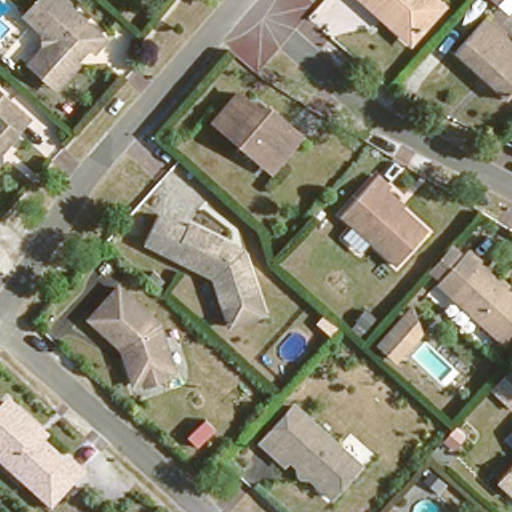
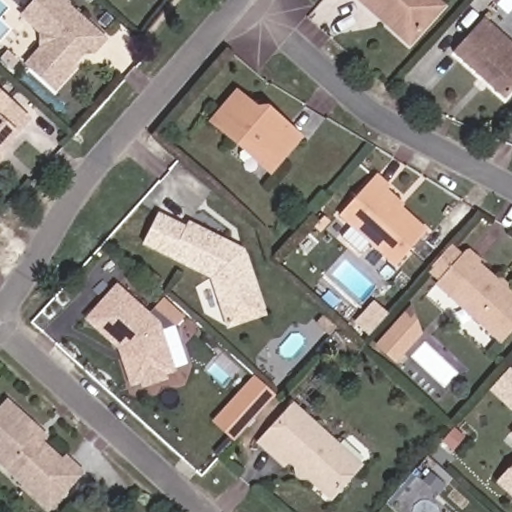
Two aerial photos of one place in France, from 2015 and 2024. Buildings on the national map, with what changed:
unchanged [(39,0),(53,0),(103,45),(93,59),(87,55),(59,89),(45,91),(30,77),(27,66),(45,47),(19,22),(39,0)]
unchanged [(365,0),(437,0),(412,29),(406,37),(376,10),(365,0)]
unchanged [(497,0),(502,0),(500,2),(497,0)]
unchanged [(512,85),(506,91),(455,47),(483,15),(512,40),(512,85)]
unchanged [(0,140),(0,87),(26,111),(0,140)]
unchanged [(236,134),(212,113),(237,88),(245,94),(255,91),(263,100),(297,127),(275,151),(266,161),(236,134)]
unchanged [(394,258),(339,211),(375,170),(393,185),(390,188),(402,199),(398,203),(423,226),(394,258)]
unchanged [(224,321),(218,302),(209,273),(142,239),(155,207),(182,221),(185,215),(242,245),(253,281),(262,310),(224,321)]
unchanged [(502,276),(512,284),(512,285),(507,290),(512,295),(512,331),(501,342),(438,284),(441,281),(430,271),(451,247),(462,257),(466,252),(497,281),(502,276)]
unchanged [(76,322),(113,286),(153,323),(169,375),(158,377),(159,383),(132,392),(131,387),(121,389),(108,352),(76,322)]
unchanged [(425,335),(399,365),(377,345),(414,305),(425,335)]
unchanged [(509,371),(512,373),(512,401),(495,385),(509,371)]
new [(253,376),(275,396),(232,442),(210,422),(253,376)]
unchanged [(25,482),(0,459),(0,396),(4,391),(32,417),(44,428),(38,435),(57,452),(61,447),(77,462),(54,487),(44,500),(25,482)]
unchanged [(255,448),(293,411),(361,470),(329,502),(287,462),(278,471),(255,448)]
unchanged [(492,482),(512,459),(512,497),(511,498),(492,482)]

